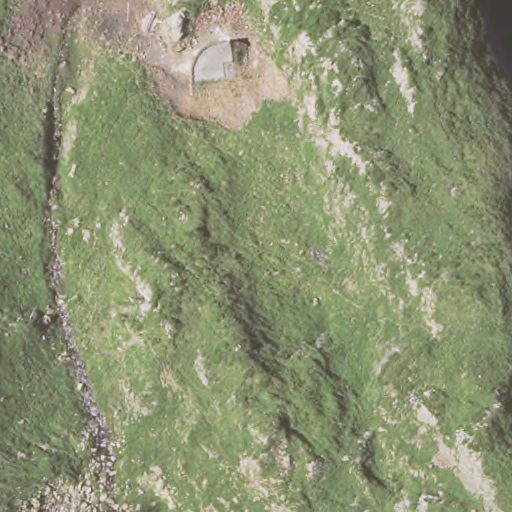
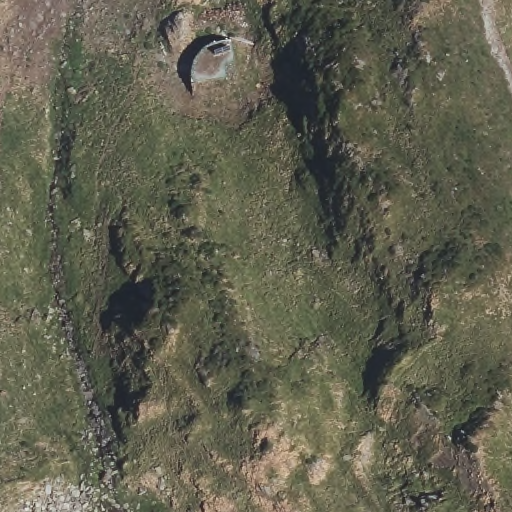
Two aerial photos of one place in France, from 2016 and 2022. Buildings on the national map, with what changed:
unchanged [(192,66),(199,51),(212,41),(235,40),(238,60),(227,63),(229,75),(192,81),(192,66)]

